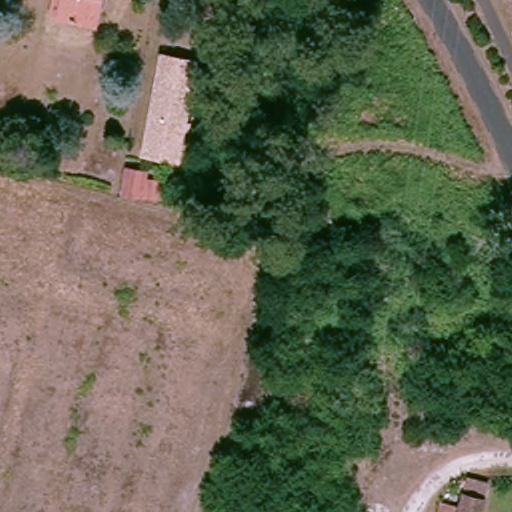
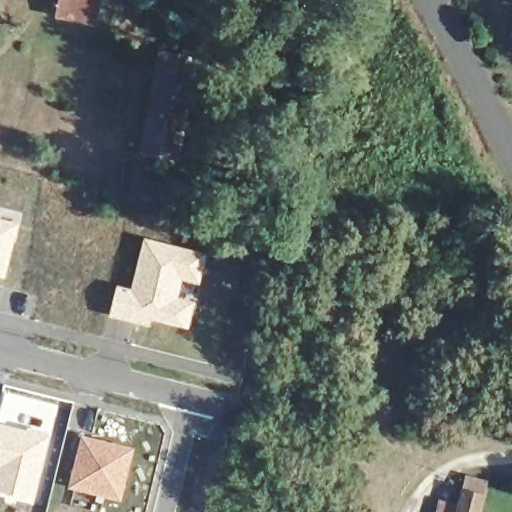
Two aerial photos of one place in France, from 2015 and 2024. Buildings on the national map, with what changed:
unchanged [(58,20),(61,0),(96,0),(92,25),(58,20)]
unchanged [(157,54),(198,62),(179,165),(137,156),(157,54)]
unchanged [(154,198),(146,196),(127,192),(130,172),(150,176),(158,178),(154,198)]
new [(6,280),(0,279),(0,220),(19,225),(6,280)]
new [(200,286),(182,283),(179,299),(192,305),(189,331),(151,322),(149,329),(110,319),(117,288),(131,291),(144,240),(207,255),(200,286)]
new [(0,494),(0,426),(49,438),(32,502),(0,494)]
new [(121,503),(69,490),(82,437),(134,451),(121,503)]
unchanged [(458,497),(463,482),(487,486),(486,497),(482,512),(453,512),(458,497)]

